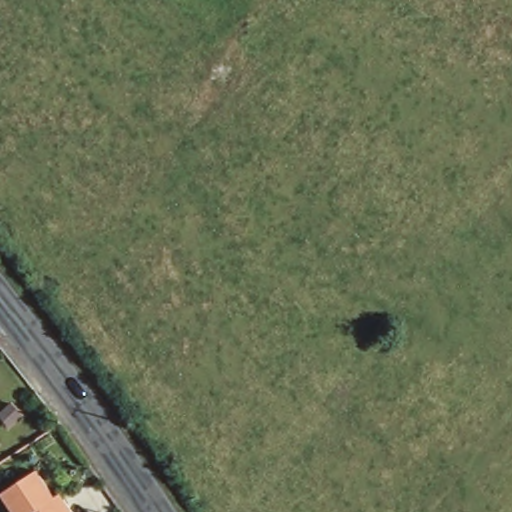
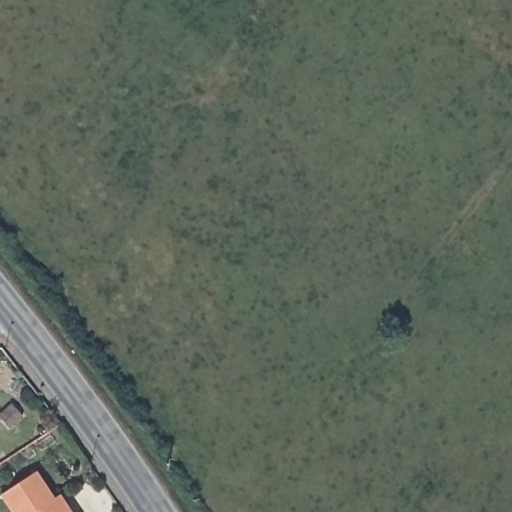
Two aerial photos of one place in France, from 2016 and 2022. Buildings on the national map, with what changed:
unchanged [(13,402),(24,415),(11,425),(0,412),(13,402)]
unchanged [(6,493),(42,474),(56,499),(64,495),(73,512),(16,512),(6,493)]

